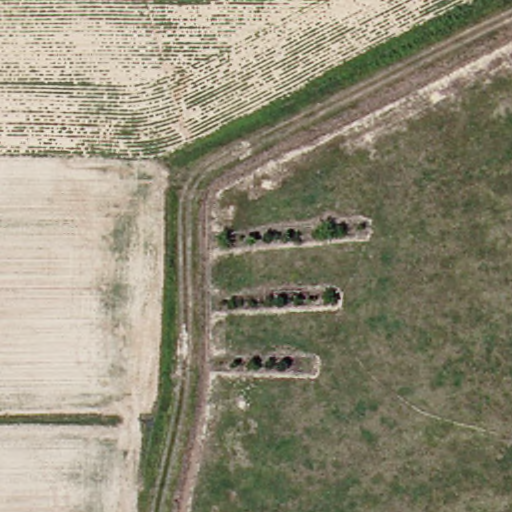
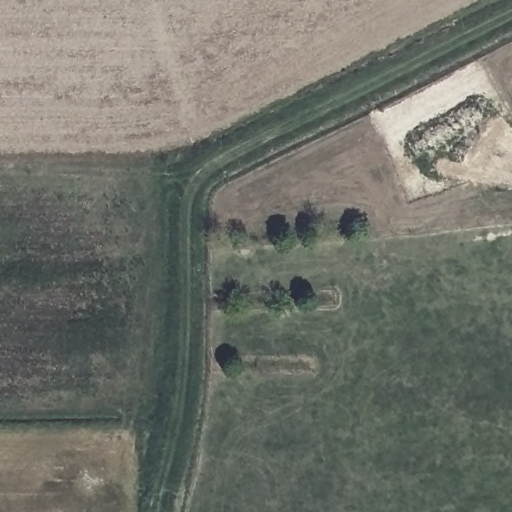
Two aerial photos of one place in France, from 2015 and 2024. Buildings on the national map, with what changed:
[]

